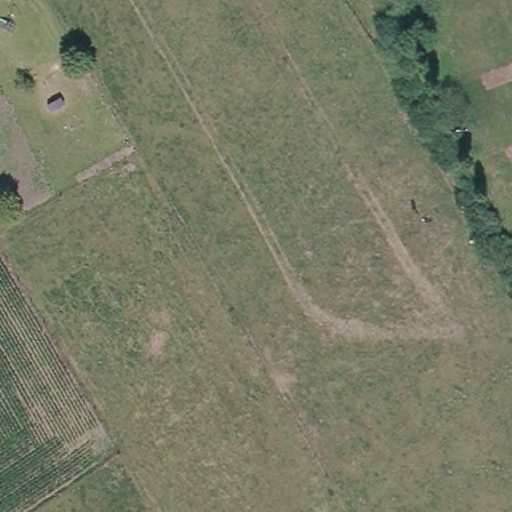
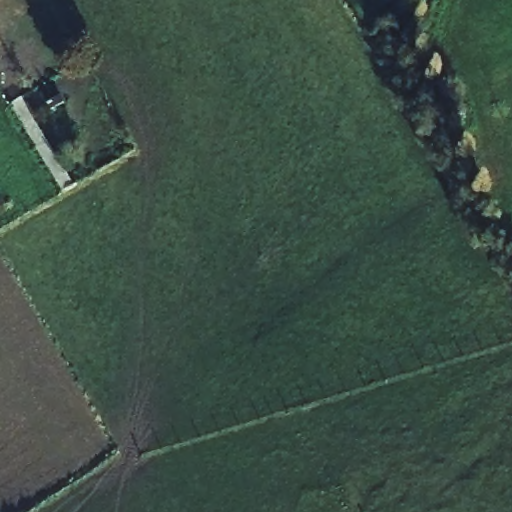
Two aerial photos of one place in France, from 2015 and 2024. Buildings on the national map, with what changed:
[]

